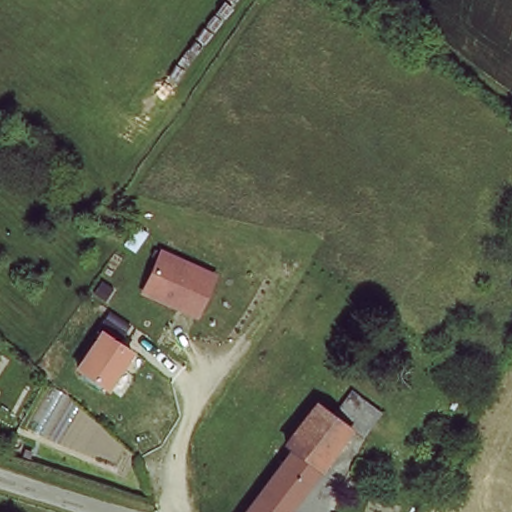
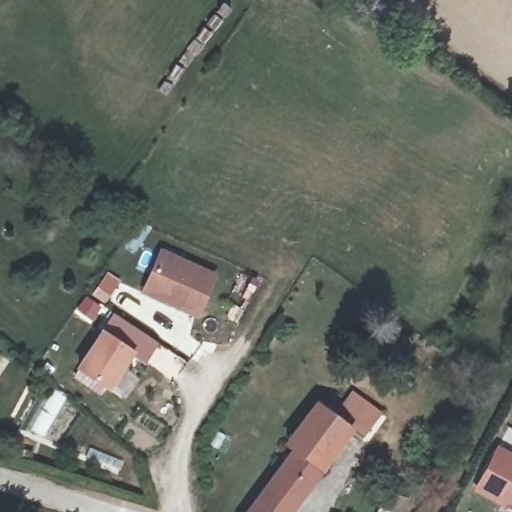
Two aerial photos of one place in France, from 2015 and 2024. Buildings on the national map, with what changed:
unchanged [(199,319),(141,301),(161,254),(218,277),(199,319)]
unchanged [(108,394),(75,372),(103,328),(136,355),(108,394)]
unchanged [(280,460),(271,453),(331,377),(374,416),(356,439),(346,432),(286,512),(241,512),(280,460)]
new [(512,462),(512,512),(499,512),(473,497),(497,453),(512,462)]

